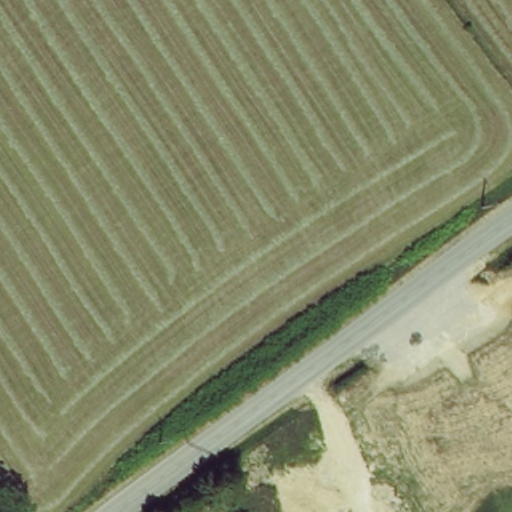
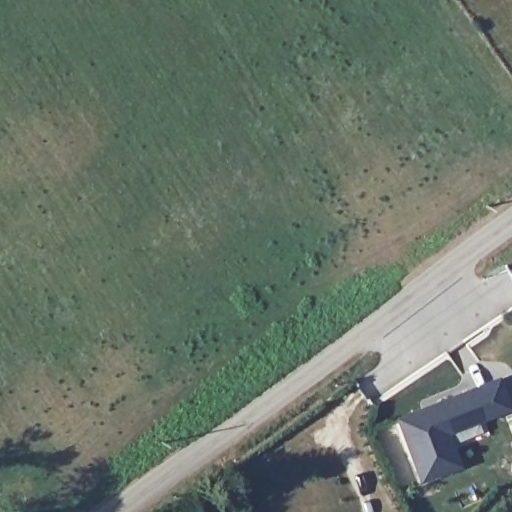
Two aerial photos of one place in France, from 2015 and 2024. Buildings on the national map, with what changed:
new [(498,376),(511,411),(449,434),(461,467),(420,483),(395,417),(498,376)]

